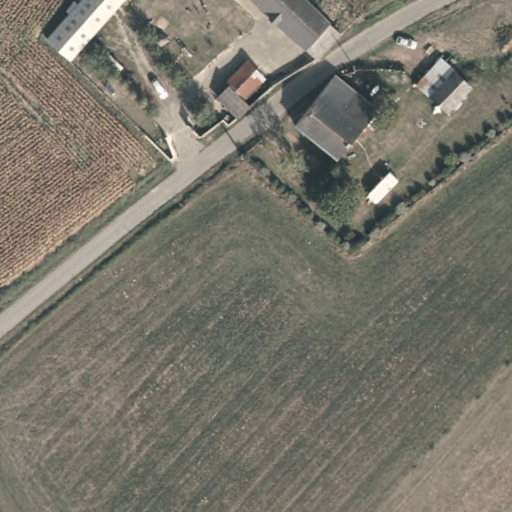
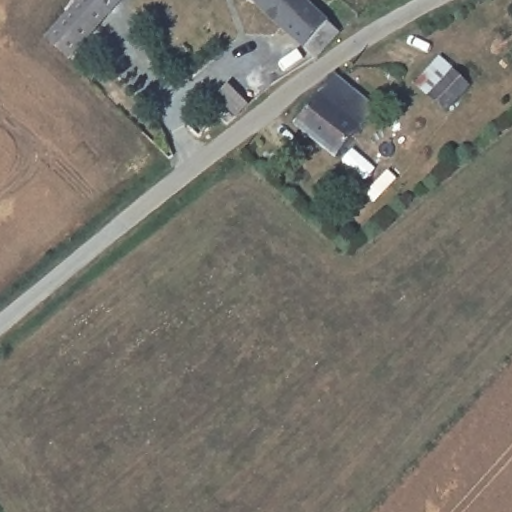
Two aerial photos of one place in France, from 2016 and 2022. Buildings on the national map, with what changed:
unchanged [(77,0),(125,0),(76,58),(48,31),(77,0)]
unchanged [(309,0),(341,28),(316,56),(312,54),(252,0),(309,0)]
unchanged [(219,98),(232,83),(228,79),(247,59),(265,75),(249,95),(255,101),(241,116),(237,114),(219,98)]
unchanged [(425,89),(452,63),(466,80),(440,106),(425,89)]
unchanged [(334,71),(340,76),(378,105),(349,142),(357,151),(349,160),(339,156),(338,158),(295,121),(310,101),(334,71)]

